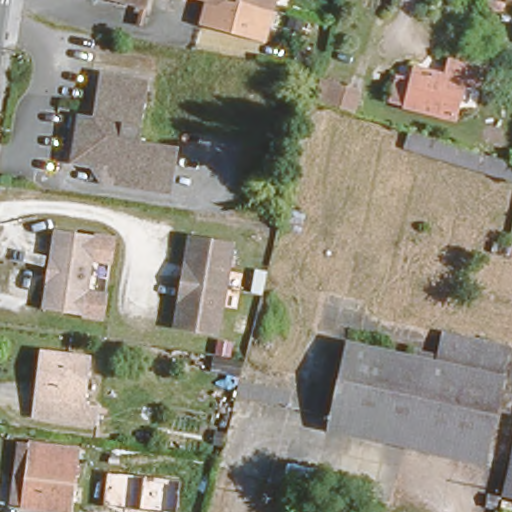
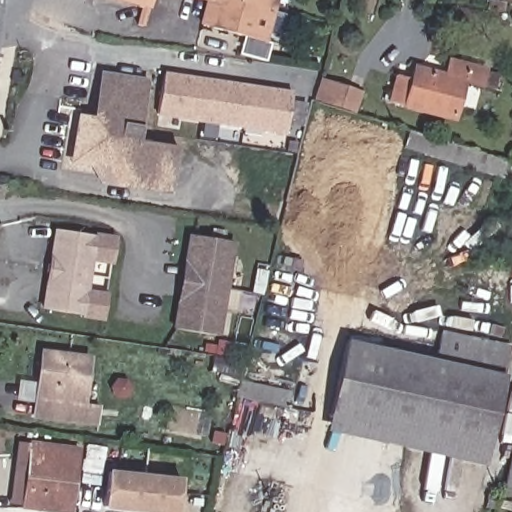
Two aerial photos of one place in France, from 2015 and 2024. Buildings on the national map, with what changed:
unchanged [(104,0),(150,0),(149,7),(104,0)]
unchanged [(205,23),(208,5),(215,0),(277,0),(272,33),(205,23)]
demolished [(144,46),(146,31),(157,33),(154,48),(144,46)]
unchanged [(430,110),(439,73),(452,75),(456,60),(493,65),(489,87),(465,82),(457,115),(430,110)]
unchanged [(393,104),(399,76),(419,80),(421,70),(439,73),(430,110),(393,104)]
unchanged [(155,76),(139,131),(179,145),(165,192),(105,181),(106,166),(65,158),(71,118),(89,119),(101,71),(155,76)]
new [(287,134),(158,114),(164,73),(291,92),(287,134)]
unchanged [(356,113),(313,100),(320,78),(361,90),(356,113)]
unchanged [(407,126),(512,161),(512,183),(402,149),(407,126)]
demolished [(276,228),(279,213),(306,219),(303,233),(276,228)]
unchanged [(47,308),(49,275),(62,269),(63,261),(50,260),(51,228),(93,229),(87,310),(47,308)]
unchanged [(173,330),(176,297),(186,289),(187,275),(176,267),(178,237),(223,239),(217,331),(173,330)]
unchanged [(437,351),(445,323),(510,343),(478,464),(328,431),(346,338),(437,351)]
unchanged [(35,345),(90,351),(82,402),(33,397),(35,345)]
unchanged [(211,373),(212,357),(244,359),(240,376),(211,373)]
unchanged [(293,411),(234,400),(238,383),(298,394),(295,406),(293,411)]
unchanged [(97,403),(101,424),(30,416),(33,397),(82,402),(97,403)]
unchanged [(28,437),(83,441),(73,508),(19,503),(28,437)]
unchanged [(512,455),(512,507),(500,505),(512,455)]
new [(109,470),(182,478),(178,512),(146,512),(104,507),(109,470)]
unchanged [(487,507),(499,511),(499,512),(486,512),(487,507)]

